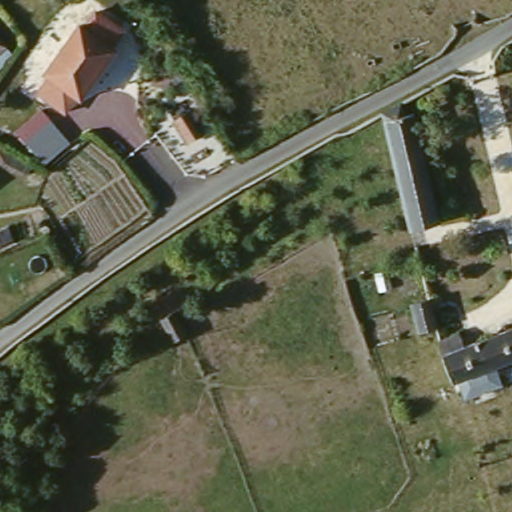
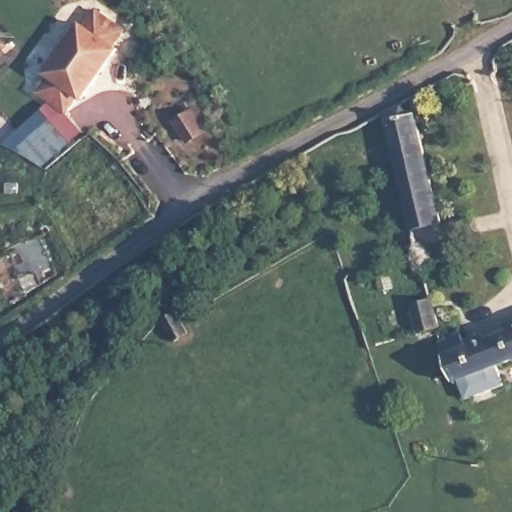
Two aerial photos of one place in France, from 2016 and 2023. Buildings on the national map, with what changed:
unchanged [(123,28),(72,112),(36,90),(93,6),(123,28)]
unchanged [(0,59),(0,35),(12,49),(0,59)]
unchanged [(44,167),(11,132),(38,108),(70,144),(44,167)]
unchanged [(180,122),(196,112),(209,132),(193,142),(180,122)]
unchanged [(419,112),(444,220),(411,230),(384,119),(419,112)]
unchanged [(42,237),(39,229),(49,225),(51,235),(42,237)]
unchanged [(419,334),(411,305),(430,300),(438,328),(419,334)]
unchanged [(465,380),(458,382),(446,356),(443,341),(464,332),(470,346),(512,329),(512,361),(465,380)]

